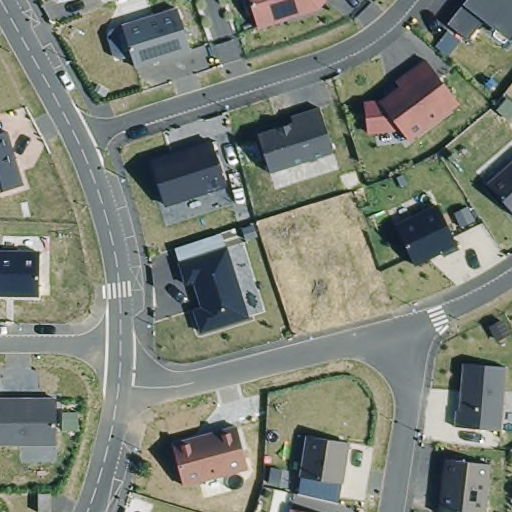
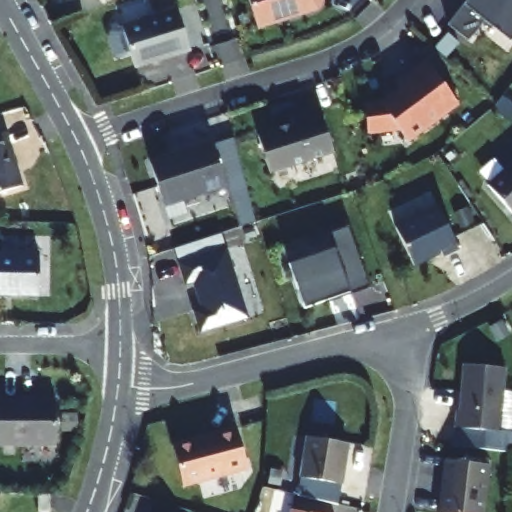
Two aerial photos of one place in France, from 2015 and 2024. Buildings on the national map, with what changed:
unchanged [(320,8),(289,17),(288,15),(279,18),(280,20),(259,27),(251,0),(325,0),(320,8)]
unchanged [(485,21),(470,40),(449,23),(468,0),(512,0),(512,41),(511,42),(496,29),(485,21)]
unchanged [(124,26),(179,9),(192,50),(136,67),(124,26)]
unchanged [(460,103),(410,140),(401,128),(369,132),(365,103),(384,101),(384,103),(403,89),(398,82),(427,60),(460,103)]
unchanged [(336,153),(322,157),(320,161),(313,164),(310,161),(272,173),(260,135),(295,124),(293,117),(322,108),(336,153)]
unchanged [(8,131),(24,185),(0,193),(0,134),(8,131)]
unchanged [(214,142),(228,185),(166,205),(152,162),(214,142)]
unchanged [(512,164),(512,211),(489,185),(512,164)]
unchanged [(460,248),(445,256),(442,251),(416,264),(397,226),(440,206),(460,248)]
new [(287,264),(335,248),(330,233),(348,227),(368,286),(347,292),(304,307),(287,264)]
unchanged [(0,295),(0,247),(36,249),(35,296),(0,295)]
unchanged [(219,251),(240,320),(202,332),(195,310),(204,308),(195,282),(187,284),(180,263),(219,251)]
unchanged [(503,431),(457,426),(459,411),(461,411),(465,363),(509,367),(503,431)]
unchanged [(58,444),(0,444),(0,399),(58,399),(58,444)]
unchanged [(239,426),(250,468),(185,485),(174,444),(239,426)]
unchanged [(350,442),(344,483),(302,476),(309,436),(350,442)]
unchanged [(486,512),(440,512),(447,459),(492,464),(486,512)]
unchanged [(50,512),(40,512),(40,494),(50,494),(50,512)]
unchanged [(292,512),(293,508),(309,512),(292,512)]

